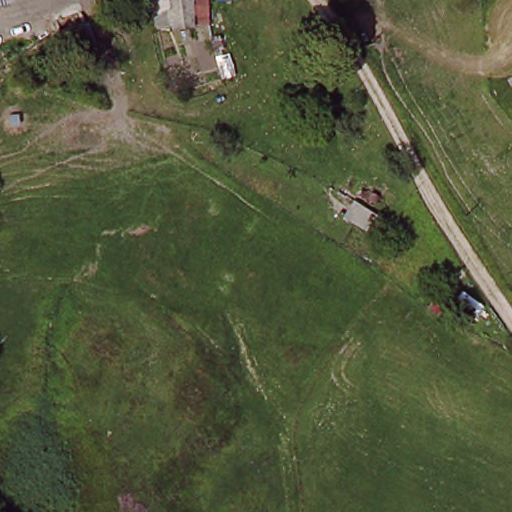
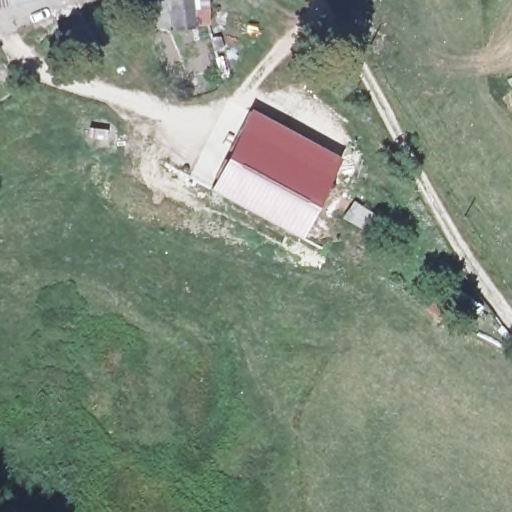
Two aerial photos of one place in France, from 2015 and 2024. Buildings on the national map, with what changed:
unchanged [(202,6),(206,22),(182,26),(181,15),(164,18),(160,1),(164,0),(201,0),(202,6)]
new [(250,108),(341,157),(296,238),(206,187),(250,108)]
new [(352,200),(375,214),(363,232),(341,218),(352,200)]

